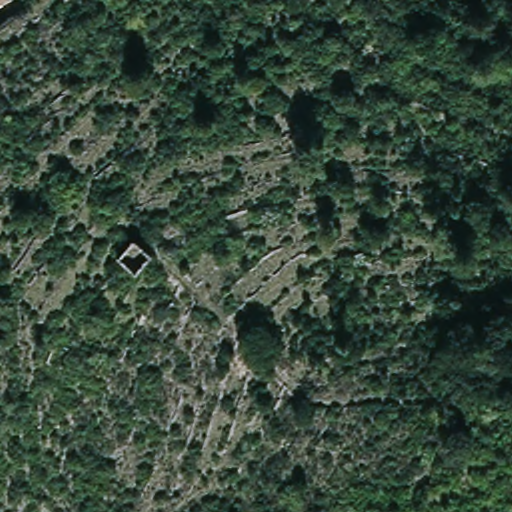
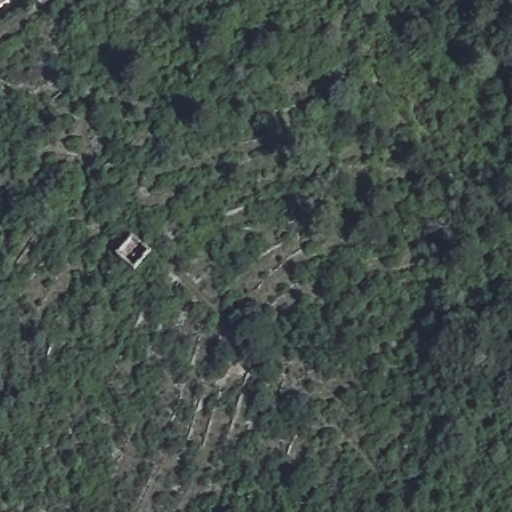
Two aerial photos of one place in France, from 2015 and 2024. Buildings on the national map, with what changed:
unchanged [(0,1),(0,0),(1,0),(0,1)]

